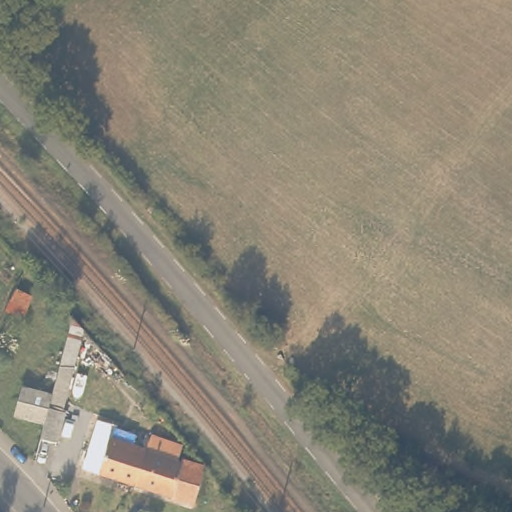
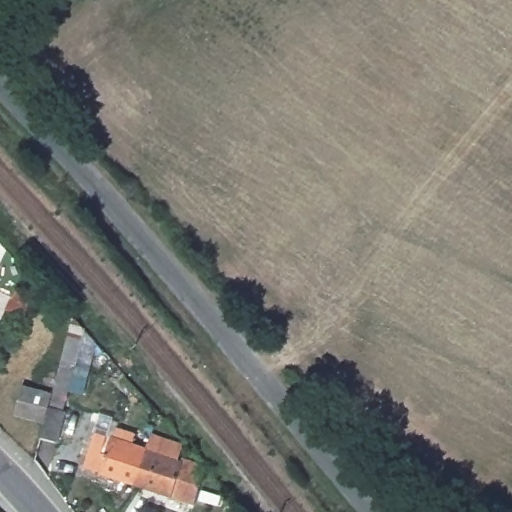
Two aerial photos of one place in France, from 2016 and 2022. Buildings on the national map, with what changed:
unchanged [(17,286),(34,294),(24,315),(7,307),(17,286)]
unchanged [(23,381),(52,389),(74,315),(88,331),(57,438),(40,432),(44,417),(15,409),(23,381)]
unchanged [(93,469),(105,434),(122,439),(127,427),(147,434),(144,446),(157,450),(146,485),(93,469)]
unchanged [(193,463),(194,459),(216,469),(205,502),(146,485),(157,450),(193,463)]

